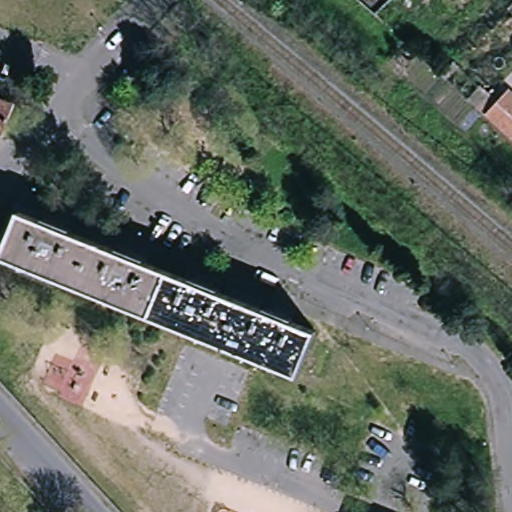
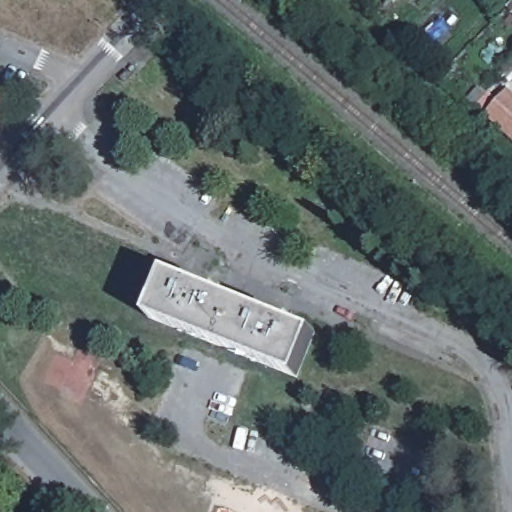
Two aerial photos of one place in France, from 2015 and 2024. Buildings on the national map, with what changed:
unchanged [(512,4),(512,12),(508,8),(512,4)]
unchanged [(512,95),(512,137),(488,115),(509,92),(512,95)]
unchanged [(6,101),(0,116),(0,99),(6,101)]
demolished [(95,243),(76,287),(0,257),(19,212),(95,243)]
demolished [(151,319),(76,287),(95,243),(170,273),(151,319)]
unchanged [(224,347),(151,319),(170,273),(243,302),(224,347)]
unchanged [(224,347),(243,302),(315,331),(297,376),(224,347)]

